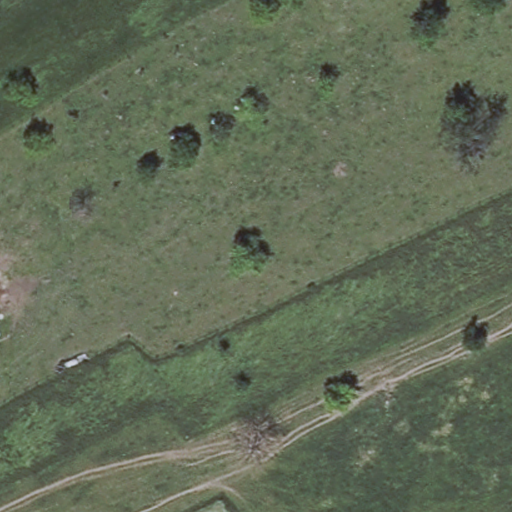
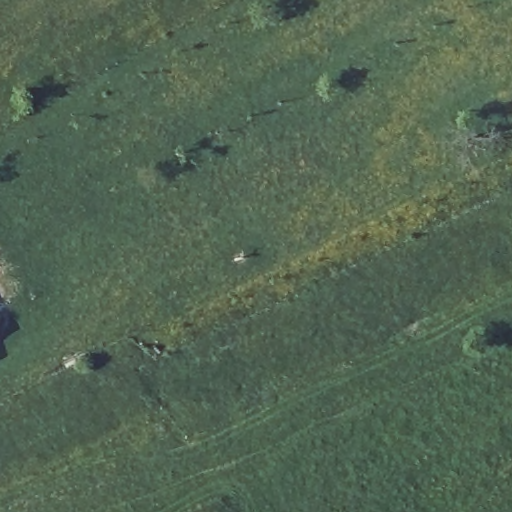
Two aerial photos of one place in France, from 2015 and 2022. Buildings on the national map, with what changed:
unchanged [(2,332),(0,334),(0,329),(2,332)]

